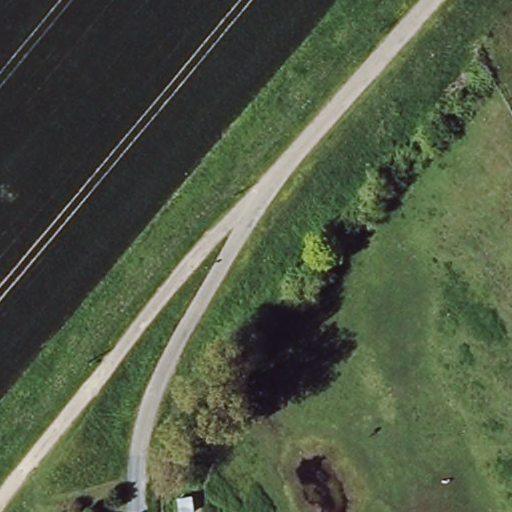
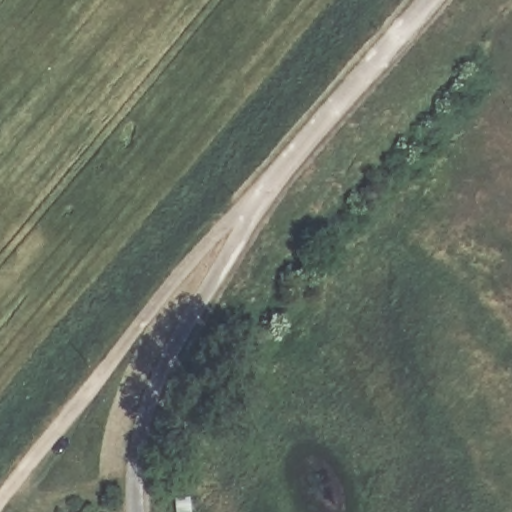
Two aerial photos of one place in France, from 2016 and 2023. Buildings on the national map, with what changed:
unchanged [(187,510),(185,497),(202,494),(204,508),(187,510)]

